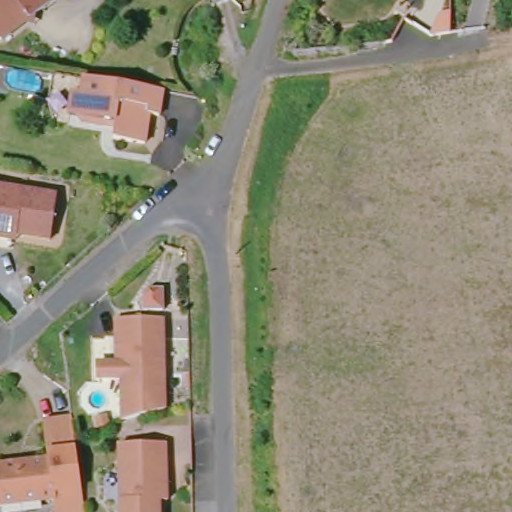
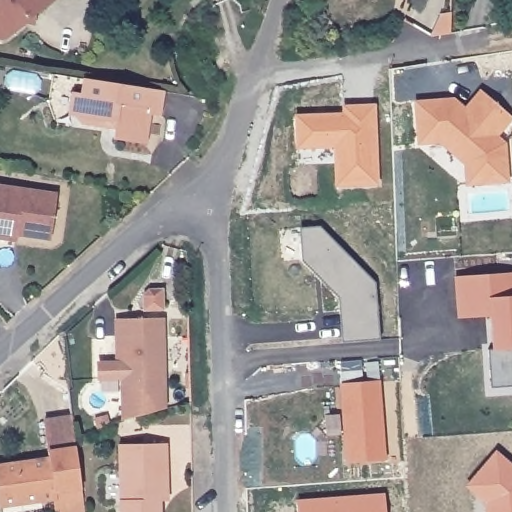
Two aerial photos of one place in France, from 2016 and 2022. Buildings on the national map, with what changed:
unchanged [(0,0),(53,0),(0,40),(0,0)]
unchanged [(453,14),(452,35),(432,37),(444,13),(453,14)]
unchanged [(164,92),(159,115),(151,114),(146,144),(113,139),(115,124),(106,122),(102,127),(80,122),(79,117),(66,115),(70,90),(86,93),(93,88),(93,81),(164,92)]
new [(462,105),(465,107),(480,89),(512,115),(496,134),(505,141),(508,179),(467,182),(466,160),(476,159),(458,144),(441,129),(441,139),(419,141),(415,100),(450,97),(462,105)]
new [(346,113),(346,106),(373,105),(377,182),(337,184),(335,145),(297,146),(296,116),(346,113)]
unchanged [(53,239),(0,233),(0,187),(59,195),(53,239)]
new [(344,341),(340,296),(304,262),(301,229),(321,227),(374,283),(378,338),(344,341)]
new [(492,387),(491,377),(489,349),(495,348),(492,315),(460,317),(457,277),(512,272),(512,386),(492,387)]
unchanged [(160,290),(161,311),(141,312),(140,296),(146,290),(160,290)]
unchanged [(161,319),(165,392),(166,413),(119,426),(117,381),(117,378),(98,380),(98,361),(116,360),(115,320),(161,319)]
new [(380,382),(387,458),(350,461),(343,385),(380,382)]
unchanged [(53,498),(54,503),(2,510),(0,496),(0,464),(47,458),(42,421),(69,417),(79,494),(53,498)]
unchanged [(113,442),(163,441),(163,461),(165,502),(158,502),(158,512),(115,512),(113,442)]
new [(497,454),(512,466),(512,512),(490,512),(489,500),(471,483),(497,454)]
new [(388,512),(299,512),(299,502),(387,495),(388,512)]

